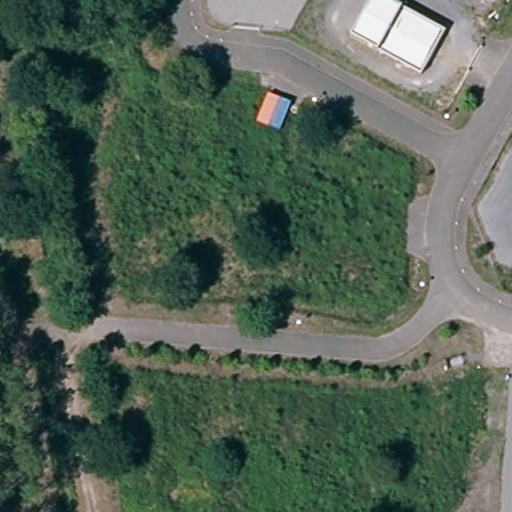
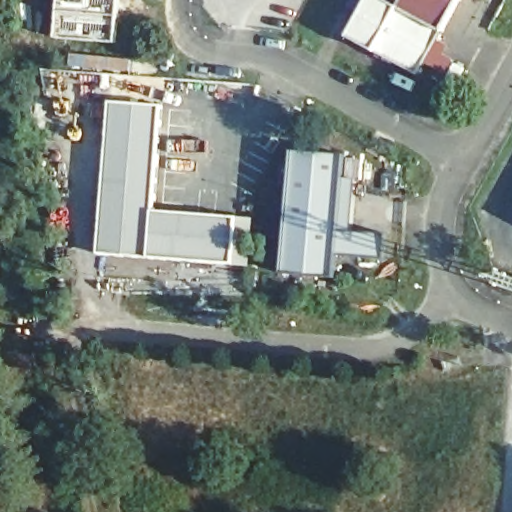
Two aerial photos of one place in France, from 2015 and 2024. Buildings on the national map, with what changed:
new [(59,0),(121,0),(117,44),(56,38),(59,0)]
unchanged [(445,30),(421,73),(377,50),(350,35),(371,0),(387,0),(401,7),(445,30)]
new [(401,7),(387,0),(461,0),(445,30),(401,7)]
new [(70,53),(131,59),(130,74),(69,69),(70,53)]
new [(107,105),(159,109),(151,214),(235,220),(232,267),(173,263),(175,238),(150,236),(148,261),(96,257),(107,105)]
new [(291,150),(344,155),(333,278),(280,273),(291,150)]

